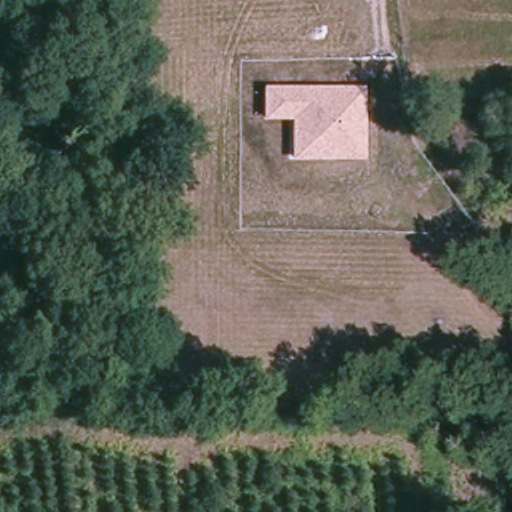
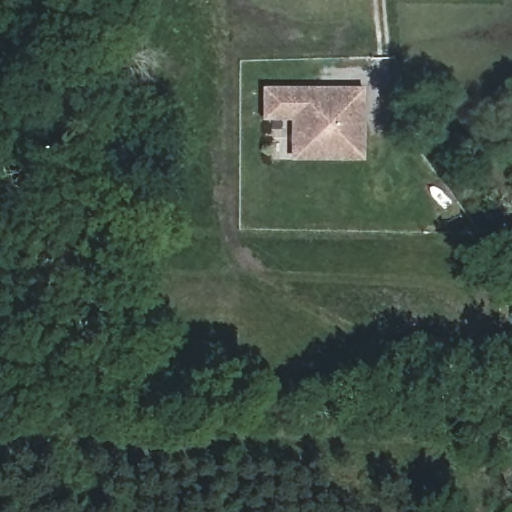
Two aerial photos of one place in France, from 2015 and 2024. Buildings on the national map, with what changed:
unchanged [(363,160),(288,160),(289,120),(259,120),(259,87),(364,87),(363,160)]

